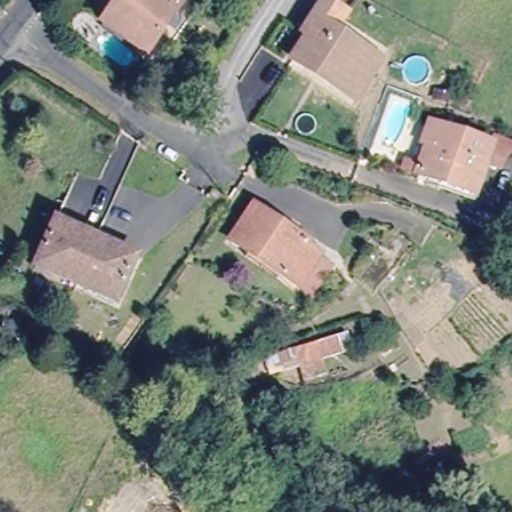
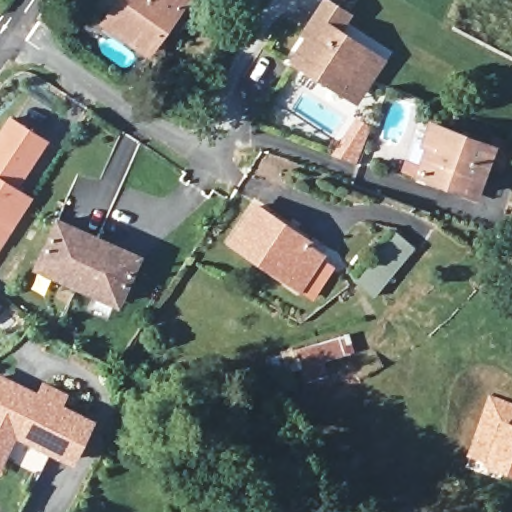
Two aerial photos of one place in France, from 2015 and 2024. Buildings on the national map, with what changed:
unchanged [(184,0),(141,60),(110,38),(107,43),(94,34),(118,0),(184,0)]
unchanged [(348,85),(330,74),(314,64),(296,53),(311,29),(307,26),(322,0),(336,0),(350,9),(340,25),(372,45),(385,52),(361,92),(348,85)]
new [(18,187),(33,197),(0,248),(0,125),(8,113),(49,139),(18,187)]
unchanged [(413,171),(424,142),(419,140),(425,122),(485,143),(468,190),(413,171)]
unchanged [(236,237),(260,202),(312,239),(310,242),(324,251),(302,283),(236,237)]
unchanged [(135,259),(115,303),(36,267),(56,224),(135,259)]
unchanged [(372,299),(352,283),(394,232),(414,248),(372,299)]
unchanged [(331,336),(335,348),(281,365),(277,352),(331,336)]
unchanged [(302,381),(299,368),(316,363),(320,376),(302,381)]
new [(37,396),(43,386),(61,394),(55,405),(87,421),(86,422),(75,417),(60,449),(38,438),(34,443),(36,445),(35,446),(26,438),(13,432),(1,456),(0,457),(0,378),(37,396)]
new [(484,461),(467,457),(488,395),(512,403),(512,476),(482,466),(484,461)]
new [(13,432),(26,438),(35,446),(36,445),(34,443),(38,438),(60,449),(75,417),(86,422),(69,459),(49,450),(37,473),(1,456),(13,432)]

